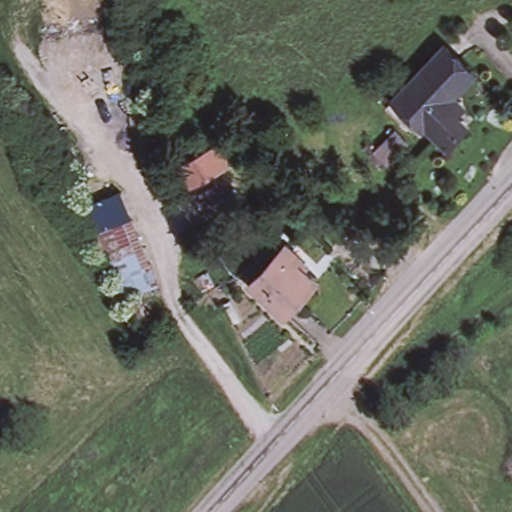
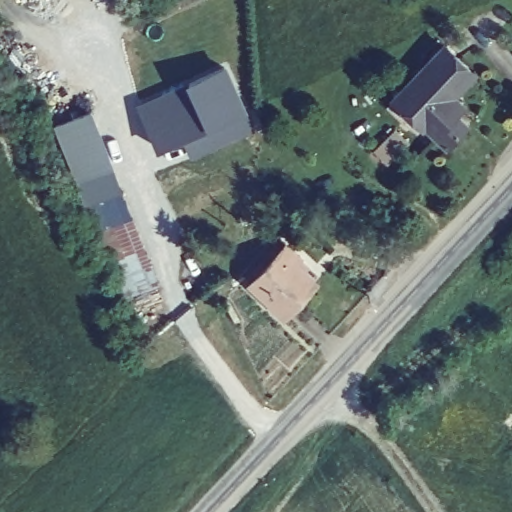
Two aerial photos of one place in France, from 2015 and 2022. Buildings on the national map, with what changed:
unchanged [(467,121),(460,128),(441,149),(419,127),(416,131),(411,126),(387,104),(438,51),(467,77),(452,92),(455,97),(457,102),(455,109),(467,121)]
new [(253,134),(190,161),(184,147),(157,159),(137,110),(225,68),(253,134)]
new [(94,116),(137,230),(98,247),(57,137),(54,129),(94,116)]
unchanged [(187,185),(180,172),(216,152),(228,145),(239,165),(227,172),(200,187),(192,192),(187,185)]
unchanged [(137,230),(157,276),(118,292),(98,247),(137,230)]
unchanged [(290,242),(302,255),(297,260),(319,280),(286,315),(251,282),(290,242)]

